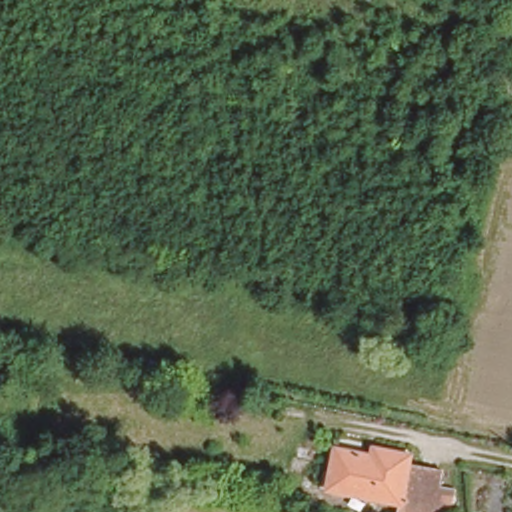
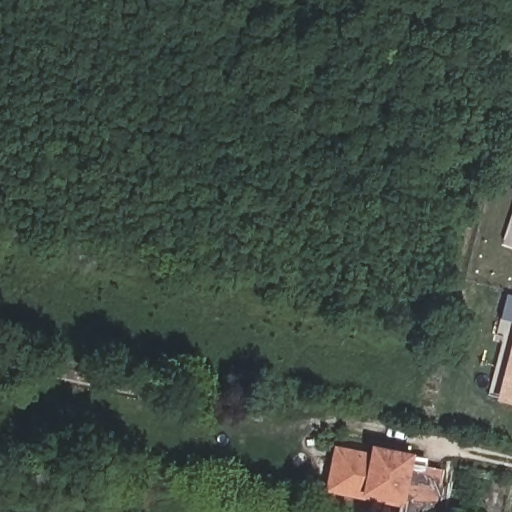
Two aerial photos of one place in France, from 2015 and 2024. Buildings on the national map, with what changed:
new [(496,399),(512,335),(512,404),(496,399)]
unchanged [(323,498),(332,455),(371,461),(373,453),(411,460),(409,468),(401,512),(323,498)]
unchanged [(401,512),(409,468),(441,473),(437,496),(453,498),(450,512),(401,512)]

